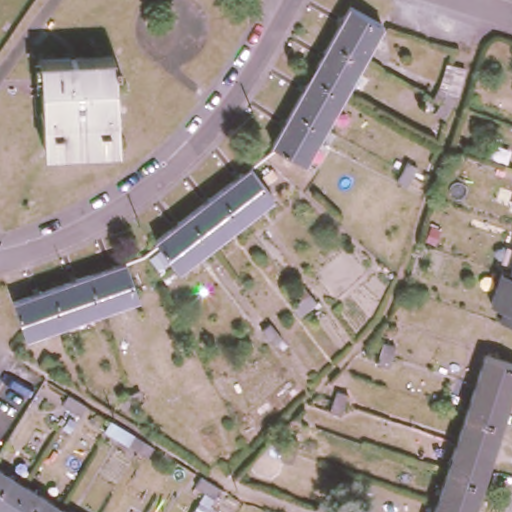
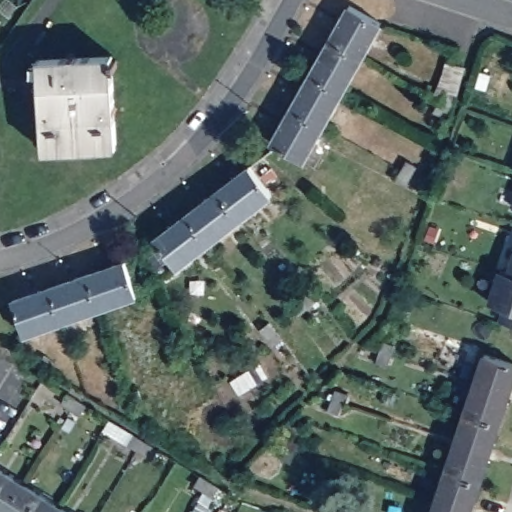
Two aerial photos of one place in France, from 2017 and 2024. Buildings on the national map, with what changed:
unchanged [(347,8),(378,26),(358,60),(328,42),(347,8)]
unchanged [(358,60),(340,94),(309,76),(328,42),(358,60)]
unchanged [(110,54),(110,59),(113,59),(114,67),(111,67),(113,145),(40,148),(36,57),(110,54)]
unchanged [(309,76),(340,94),(320,128),(290,111),(309,76)]
unchanged [(442,90),(451,95),(446,104),(440,115),(431,109),(437,99),(442,90)]
unchanged [(320,128),(301,160),(276,146),(271,143),(290,111),(320,128)]
unchanged [(393,176),(398,167),(403,158),(413,163),(408,173),(403,182),(393,176)]
unchanged [(249,167),(270,196),(238,220),(217,192),(249,167)]
unchanged [(238,220),(207,244),(186,215),(217,192),(238,220)]
unchanged [(510,209),(512,201),(512,210),(510,209)]
unchanged [(155,239),(186,215),(207,244),(176,267),(157,243),(155,239)]
unchanged [(495,305),(485,302),(496,269),(505,272),(512,251),(512,327),(490,320),(495,305)]
unchanged [(119,257),(131,291),(93,304),(82,270),(119,257)]
unchanged [(93,304),(56,316),(45,283),(82,270),(93,304)]
unchanged [(6,296),(45,283),(56,316),(18,329),(6,296)]
unchanged [(288,301),(297,293),(306,286),(313,296),(305,302),(295,310),(288,301)]
unchanged [(267,316),(274,326),(265,333),(257,324),(267,316)]
unchanged [(489,322),(512,330),(512,344),(485,335),(489,322)]
unchanged [(375,359),(378,349),(382,337),(392,340),(388,352),(385,362),(375,359)]
unchanged [(512,359),(512,386),(510,392),(477,381),(487,351),(512,359)]
unchanged [(40,352),(50,358),(44,367),(34,361),(40,352)]
unchanged [(510,392),(500,421),(467,410),(477,381),(510,392)]
unchanged [(136,384),(140,395),(130,399),(118,404),(114,391),(126,387),(136,384)]
unchanged [(325,408),(328,398),(331,387),(342,390),(339,401),(335,412),(325,408)]
unchanged [(75,410),(65,405),(55,399),(62,390),(71,395),(80,401),(75,410)]
unchanged [(500,421),(490,451),(457,440),(467,410),(500,421)]
unchanged [(142,452),(133,447),(125,441),(130,432),(139,437),(148,443),(142,452)]
unchanged [(279,434),(290,438),(287,448),(283,459),(272,455),(275,445),(279,434)]
unchanged [(490,451),(480,481),(447,469),(457,440),(490,451)]
unchanged [(0,463),(26,480),(7,510),(0,506),(0,463)]
unchanged [(480,481),(470,509),(437,498),(447,469),(480,481)]
unchanged [(208,492),(200,487),(190,481),(195,472),(205,477),(214,483),(208,492)]
unchanged [(60,501),(54,512),(10,512),(7,510),(26,480),(60,501)]
unchanged [(470,512),(432,512),(437,498),(470,509),(470,512)]
unchanged [(78,512),(54,512),(60,501),(78,512)]

